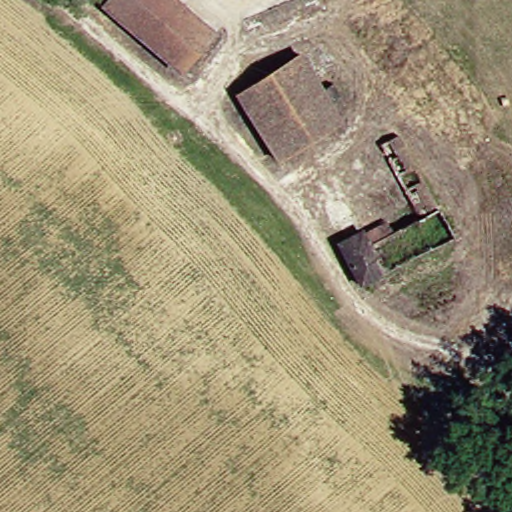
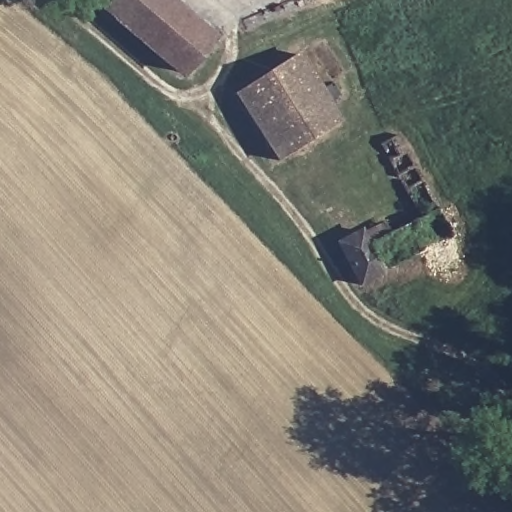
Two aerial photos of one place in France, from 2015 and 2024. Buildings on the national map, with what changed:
unchanged [(134,35),(105,10),(113,0),(164,0),(134,35)]
unchanged [(134,35),(164,0),(174,0),(214,35),(181,73),(134,35)]
unchanged [(334,78),(324,65),(332,59),(342,72),(334,78)]
unchanged [(303,60),(332,105),(268,145),(240,99),(295,64),(303,60)]
unchanged [(332,105),(342,120),(278,161),(268,145),(332,105)]
unchanged [(389,234),(419,215),(382,145),(400,134),(456,237),(387,273),(361,286),(338,244),(364,230),(383,220),(389,234)]

